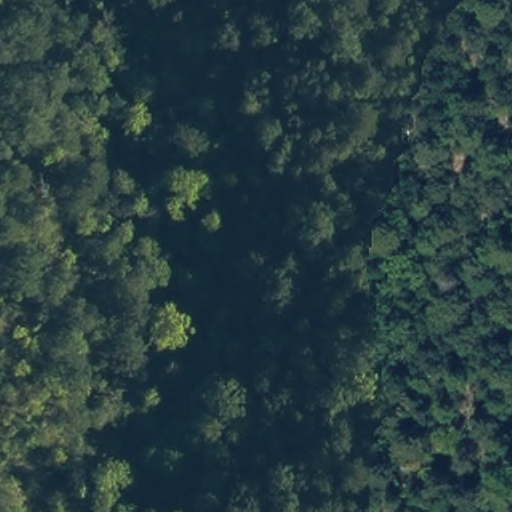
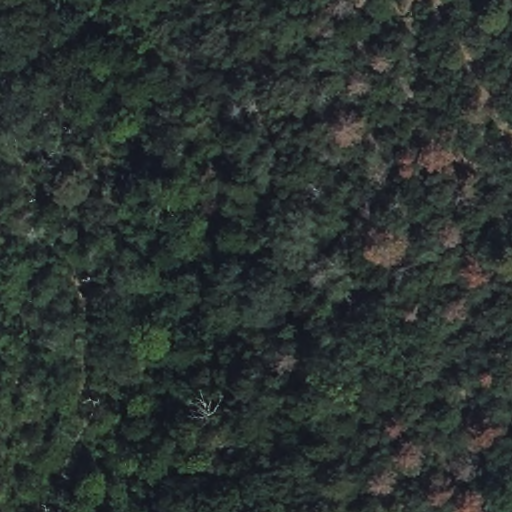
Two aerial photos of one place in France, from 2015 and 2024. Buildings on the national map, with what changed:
[]

